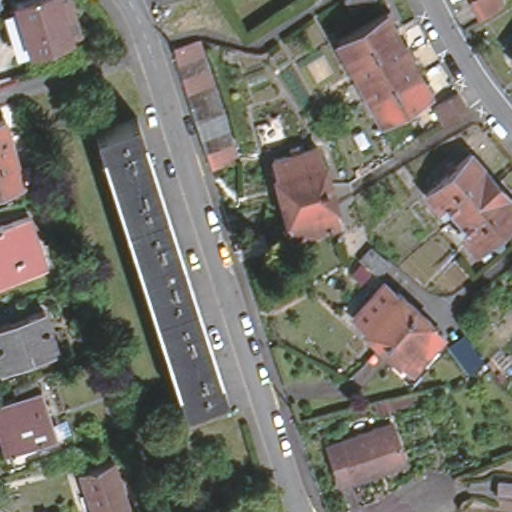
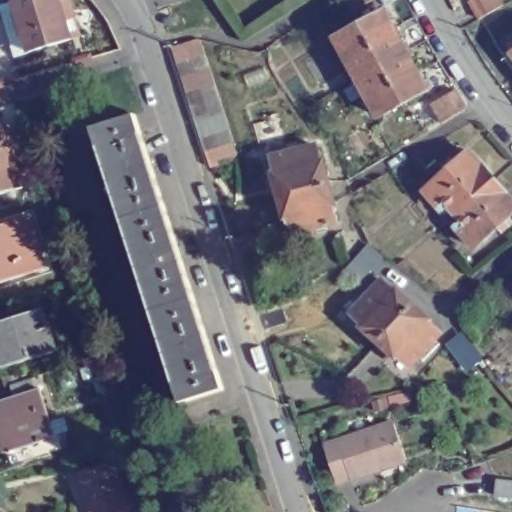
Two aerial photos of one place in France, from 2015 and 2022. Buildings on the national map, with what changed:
unchanged [(9,3),(18,0),(66,0),(75,28),(34,42),(22,45),(16,27),(9,3)]
unchanged [(346,1),(348,0),(376,0),(355,14),(346,1)]
unchanged [(472,4),(479,0),(502,0),(507,7),(484,22),(472,4)]
unchanged [(344,55),(333,36),(381,10),(391,27),(392,29),(344,55)]
unchanged [(506,24),(512,19),(512,32),(506,24)]
unchanged [(355,74),(344,55),(392,29),(394,32),(402,48),(355,74)]
unchanged [(508,42),(507,41),(512,36),(512,54),(511,55),(504,46),(508,42)]
unchanged [(199,126),(194,111),(189,96),(184,82),(180,67),(174,51),(202,42),(207,58),(212,74),(217,87),(221,102),(226,116),(231,131),(236,145),(241,162),(214,171),(208,154),(204,141),(199,126)]
unchanged [(402,48),(412,64),(414,67),(366,94),(355,74),(402,48)]
unchanged [(366,94),(414,67),(416,71),(426,87),(377,114),(366,94)]
unchanged [(445,127),(435,109),(457,95),(468,111),(467,115),(445,127)]
unchanged [(118,219),(89,127),(129,114),(159,205),(118,219)]
unchanged [(0,116),(2,116),(21,181),(0,187),(0,116)]
unchanged [(274,198),(266,177),(267,176),(261,159),(302,144),(309,160),(312,159),(321,182),(274,198)]
unchanged [(447,201),(439,207),(425,190),(469,152),(482,167),(484,166),(495,180),(456,212),(447,201)]
unchanged [(495,180),(507,194),(507,195),(512,201),(512,216),(475,247),(460,231),(467,225),(456,212),(495,180)]
unchanged [(325,200),(331,216),(289,231),(284,216),(281,216),(274,198),(321,182),(327,199),(325,200)]
unchanged [(118,219),(159,205),(188,297),(148,311),(118,219)]
unchanged [(0,219),(27,211),(34,234),(29,235),(37,263),(0,275),(0,219)]
unchanged [(239,246),(247,243),(270,237),(275,253),(253,259),(244,262),(239,246)]
unchanged [(355,254),(365,243),(384,261),(374,271),(355,254)]
unchanged [(377,342),(360,327),(362,325),(349,315),(378,280),(392,291),(393,290),(411,305),(377,342)]
unchanged [(177,401),(148,311),(188,297),(217,388),(177,401)]
unchanged [(55,345),(0,363),(0,316),(42,303),(55,345)]
unchanged [(437,331),(438,332),(409,365),(396,353),(393,356),(377,342),(411,305),(426,318),(425,321),(437,331)]
unchanged [(456,353),(468,343),(484,362),(472,372),(456,353)]
unchanged [(0,442),(0,398),(8,395),(5,386),(29,378),(32,387),(35,387),(49,436),(2,450),(0,442)]
unchanged [(352,476),(351,472),(337,477),(324,439),(388,417),(400,454),(377,462),(380,467),(352,476)]
unchanged [(77,467),(112,456),(121,481),(131,511),(128,512),(91,512),(77,467)]
unchanged [(500,498),(502,482),(512,483),(512,500),(500,498)]

